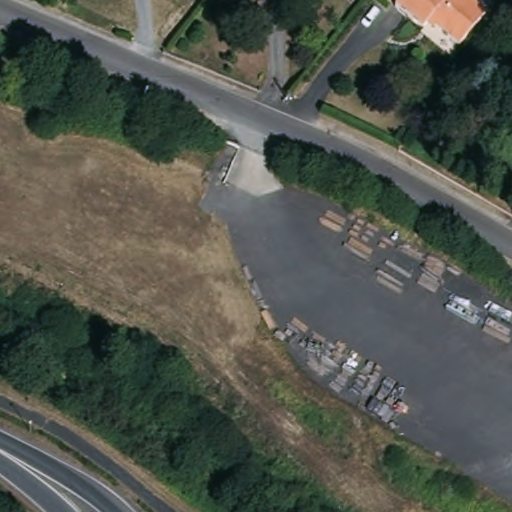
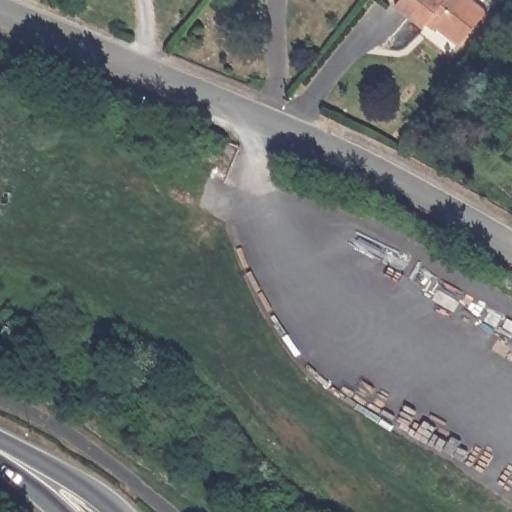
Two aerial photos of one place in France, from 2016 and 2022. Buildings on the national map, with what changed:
unchanged [(486,11),(462,45),(432,23),(428,27),(399,6),(403,0),(473,0),(486,11)]

